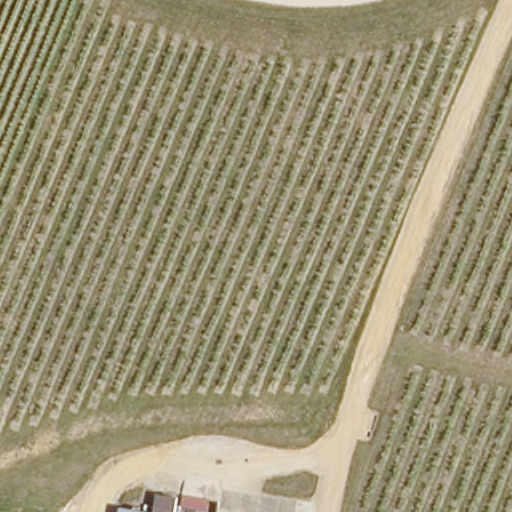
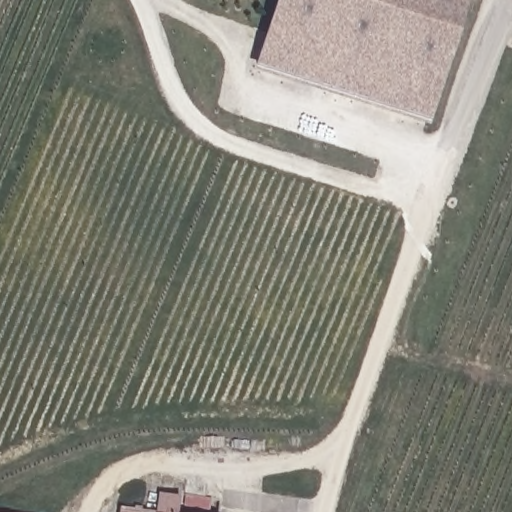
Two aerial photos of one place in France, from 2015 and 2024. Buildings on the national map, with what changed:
new [(252,69),(274,0),(465,0),(428,127),(252,69)]
unchanged [(183,512),(122,512),(124,504),(183,512)]

